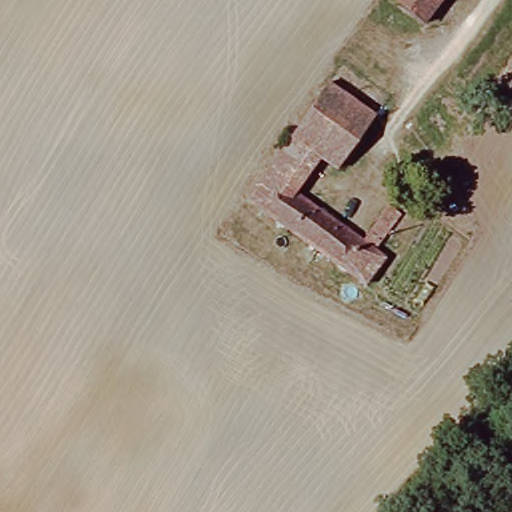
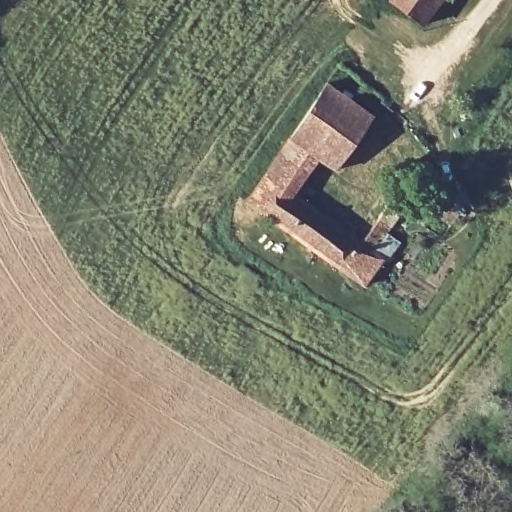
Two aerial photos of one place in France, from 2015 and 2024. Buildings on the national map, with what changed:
unchanged [(429,26),(397,3),(399,0),(449,0),(429,26)]
unchanged [(335,180),(322,170),(297,203),(359,252),(386,216),(401,229),(375,265),(383,270),(367,293),(248,207),(331,90),(337,95),(376,123),(335,180)]

